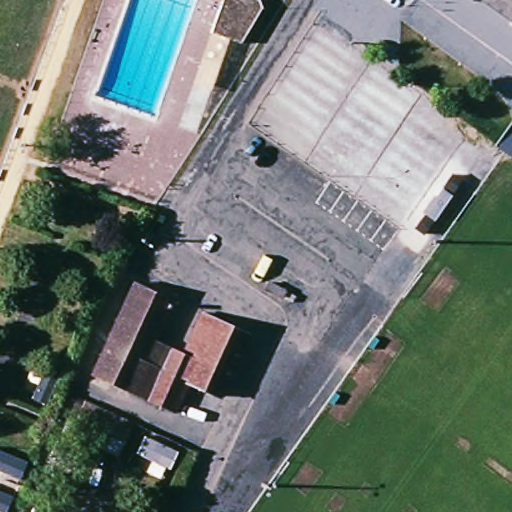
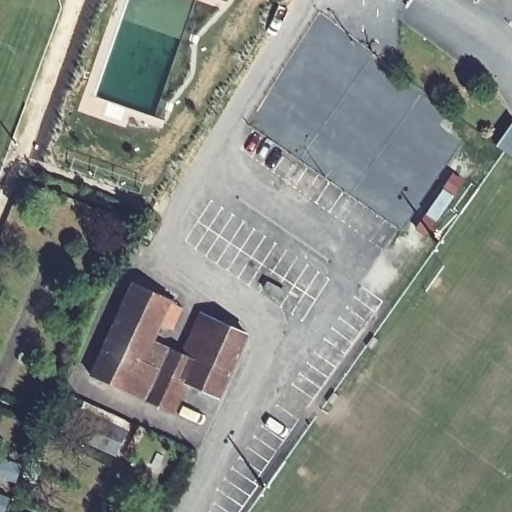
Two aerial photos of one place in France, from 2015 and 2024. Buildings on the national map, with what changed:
unchanged [(226,0),(265,0),(265,5),(244,41),(216,30),(226,0)]
unchanged [(500,0),(512,0),(512,9),(500,0)]
unchanged [(512,116),(512,151),(464,117),(479,94),(512,116)]
unchanged [(183,296),(155,358),(183,371),(211,308),(258,331),(229,393),(198,379),(184,408),(102,371),(143,278),(183,296)]
unchanged [(293,300),(276,290),(280,282),(281,281),(298,291),(296,293),(293,300)]
unchanged [(119,455),(77,435),(88,411),(131,432),(119,455)]

